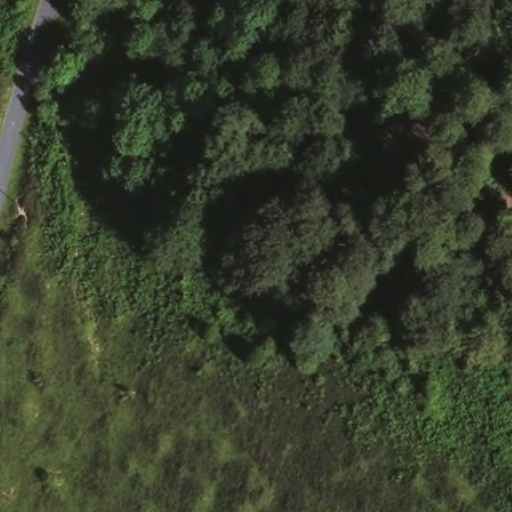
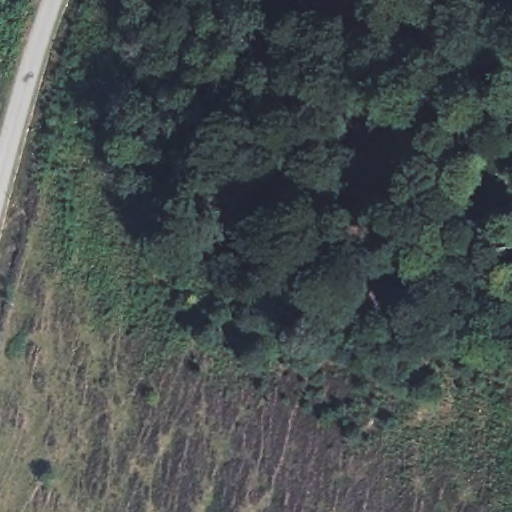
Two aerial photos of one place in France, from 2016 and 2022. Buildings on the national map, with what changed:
[]

